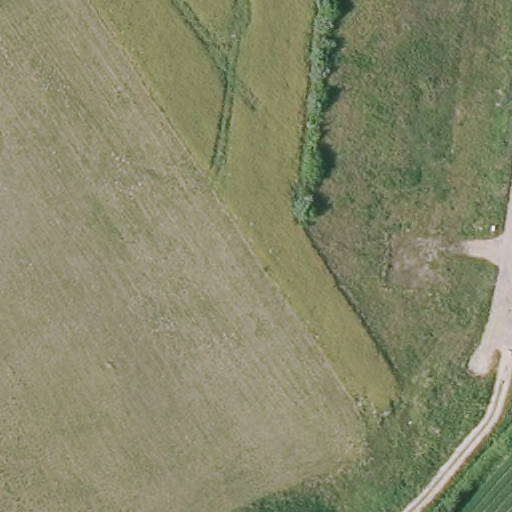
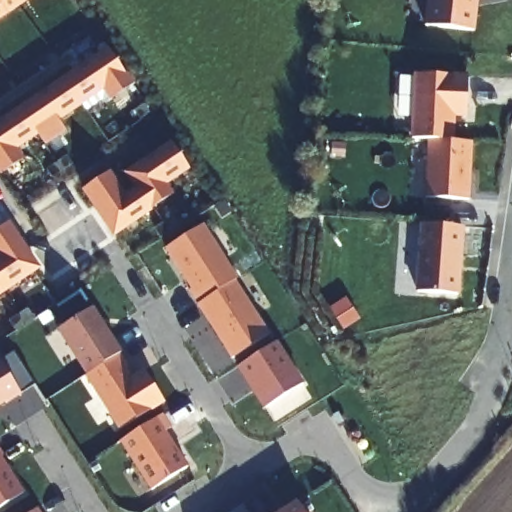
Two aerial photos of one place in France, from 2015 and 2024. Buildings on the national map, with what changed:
new [(23,0),(0,15),(0,0),(23,0)]
new [(475,4),(472,28),(425,23),(428,0),(471,0),(470,3),(475,4)]
new [(57,118),(64,130),(42,144),(35,132),(13,147),(20,158),(0,172),(0,120),(107,48),(132,85),(110,99),(103,88),(57,118)]
new [(414,75),(465,75),(465,115),(452,114),(452,140),(412,140),(414,75)]
new [(470,201),(429,199),(431,141),(473,143),(470,201)]
new [(170,142),(187,168),(162,184),(170,195),(112,234),(81,188),(107,171),(123,196),(135,188),(125,172),(170,142)]
new [(7,223),(37,269),(0,293),(0,228),(7,223)]
new [(424,225),(464,227),(461,294),(422,293),(424,225)]
new [(188,291),(190,290),(165,249),(202,226),(235,281),(197,305),(188,291)]
new [(232,282),(267,337),(230,360),(197,305),(232,282)]
new [(342,297),(355,318),(340,328),(327,308),(342,297)]
new [(59,331),(93,310),(121,355),(87,376),(59,331)]
new [(302,386),(264,410),(252,392),(252,389),(247,381),(246,382),(237,367),(275,343),(302,386)]
new [(120,356),(129,370),(126,372),(132,381),(145,373),(164,404),(120,432),(85,377),(87,376),(120,356)]
new [(19,391),(0,403),(0,360),(19,391)]
new [(170,432),(165,435),(187,470),(150,493),(120,443),(162,417),(170,432)]
new [(0,459),(0,454),(2,457),(0,459)]
new [(22,495),(0,509),(0,460),(22,495)]
new [(297,503),(302,512),(283,512),(297,503)]
new [(40,512),(33,512),(37,509),(40,512)]

